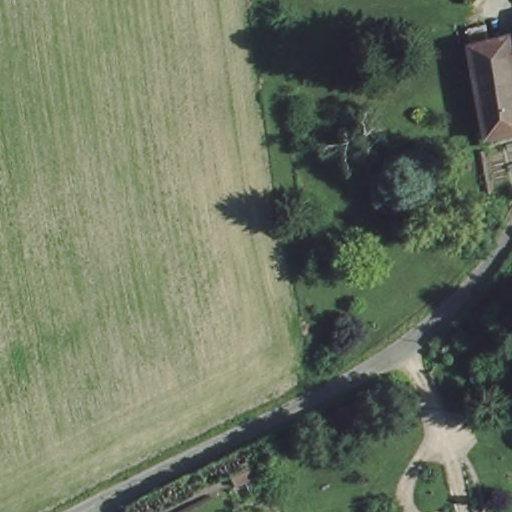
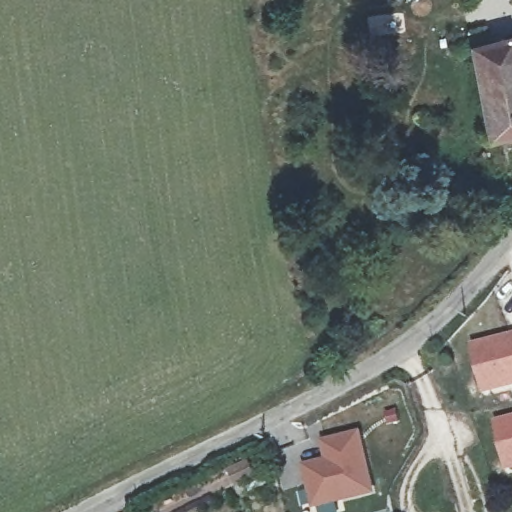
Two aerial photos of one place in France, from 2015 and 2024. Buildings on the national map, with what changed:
unchanged [(491,128),(472,44),(512,32),(512,122),(491,128)]
new [(485,390),(473,345),(512,335),(512,384),(485,390)]
new [(508,469),(497,423),(512,419),(512,468),(508,469)]
new [(326,457),(321,441),(361,430),(376,493),(314,508),(303,465),(326,457)]

